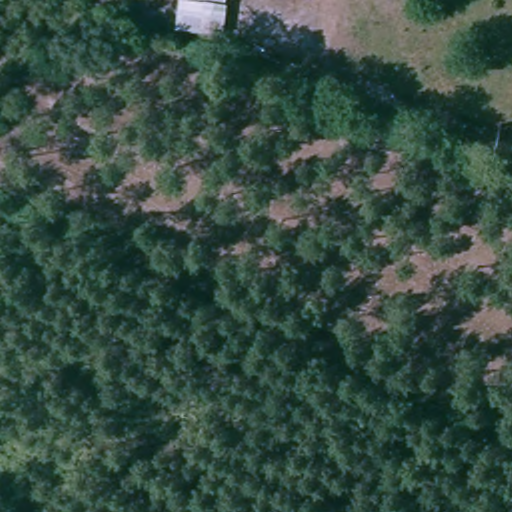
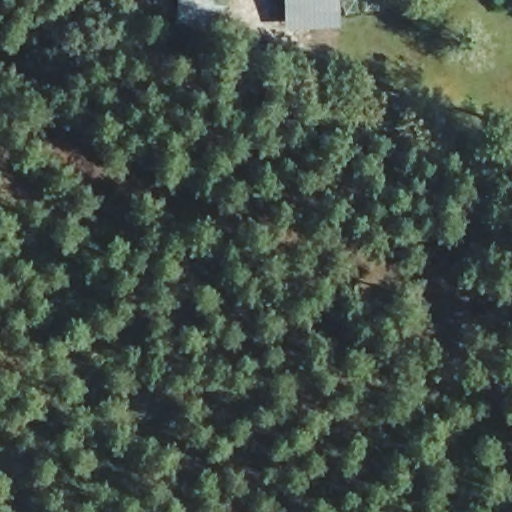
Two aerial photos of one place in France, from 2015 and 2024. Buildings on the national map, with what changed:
unchanged [(175,28),(181,0),(217,0),(220,1),(215,35),(175,28)]
new [(341,31),(284,32),(283,0),(340,0),(341,31)]

